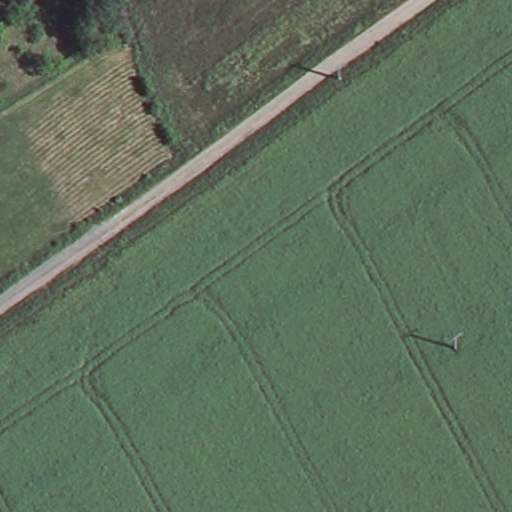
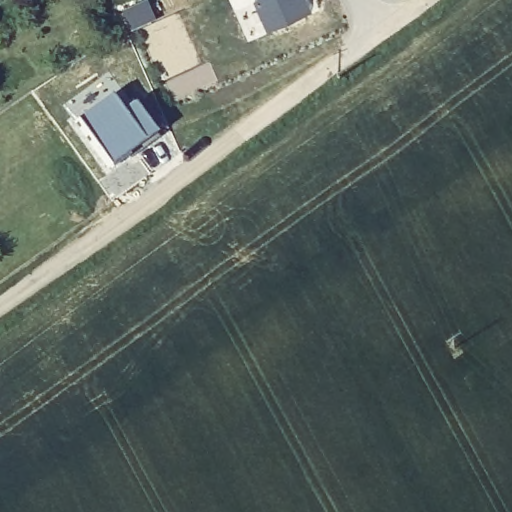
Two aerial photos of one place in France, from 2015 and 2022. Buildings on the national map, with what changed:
new [(258,0),(310,0),(313,6),(268,26),(258,0)]
new [(116,92),(127,110),(138,100),(160,130),(115,162),(80,117),(116,92)]

